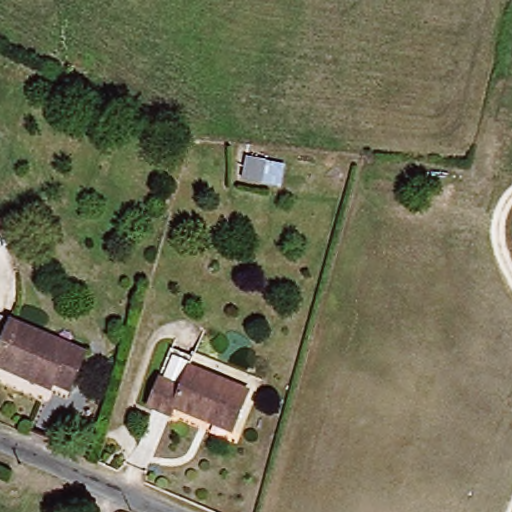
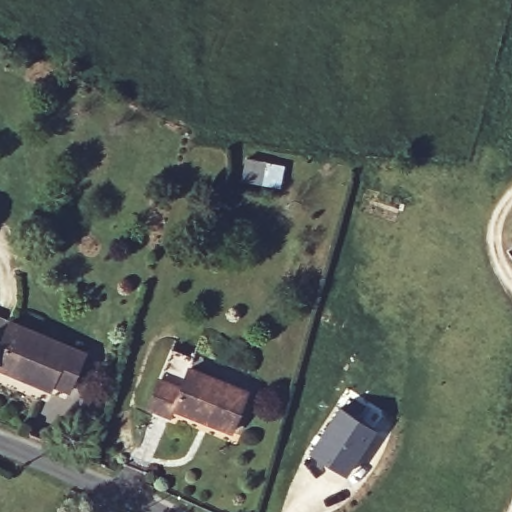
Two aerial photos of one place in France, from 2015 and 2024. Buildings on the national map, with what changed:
unchanged [(242,180),(245,154),(268,157),(264,183),(242,180)]
unchanged [(0,316),(87,352),(74,387),(60,382),(55,392),(30,382),(0,368),(0,316)]
unchanged [(174,413),(170,423),(143,413),(168,354),(199,367),(194,373),(220,384),(206,425),(174,413)]
unchanged [(249,395),(234,434),(206,425),(220,384),(249,395)]
new [(343,407),(377,429),(347,476),(314,454),(343,407)]

